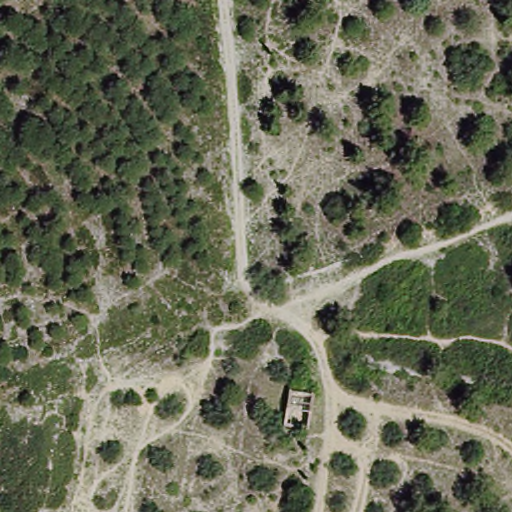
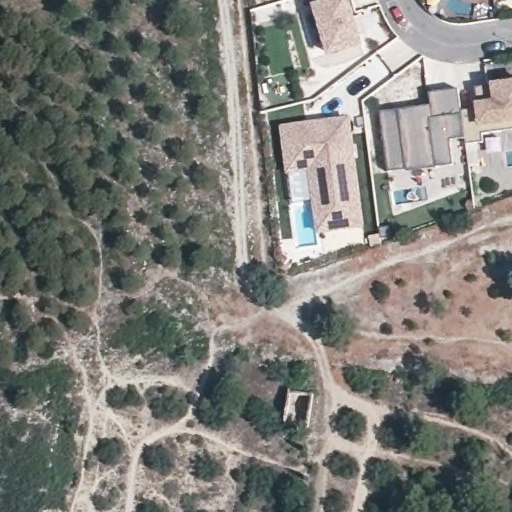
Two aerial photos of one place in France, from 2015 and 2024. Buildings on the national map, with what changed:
new [(326,54),(312,2),(317,0),(353,0),(365,42),(326,54)]
new [(484,128),(485,140),(467,141),(462,107),(478,101),(477,83),(492,81),(512,80),(512,125),(484,128)]
new [(435,101),(437,110),(450,108),(455,158),(438,161),(437,156),(407,158),(407,163),(390,164),(382,106),(435,101)]
new [(365,223),(317,230),(306,168),(287,169),(280,122),(349,112),(365,223)]
demolished [(287,423),(297,390),(317,395),(310,430),(287,423)]

